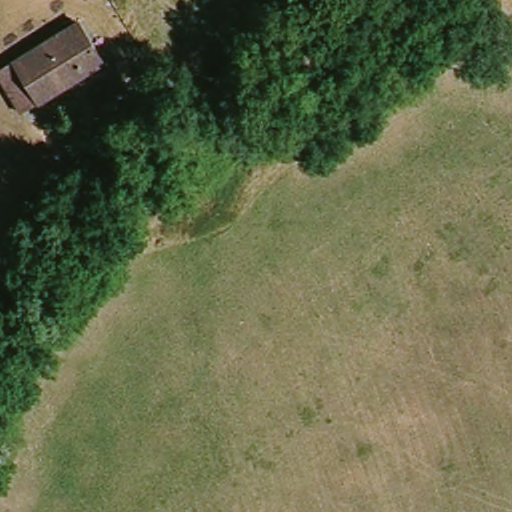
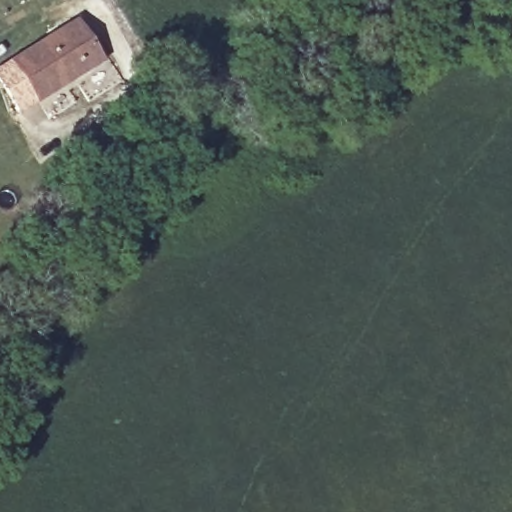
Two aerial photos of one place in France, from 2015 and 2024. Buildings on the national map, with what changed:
unchanged [(0,88),(0,72),(13,66),(76,21),(106,65),(42,104),(19,115),(0,88)]

